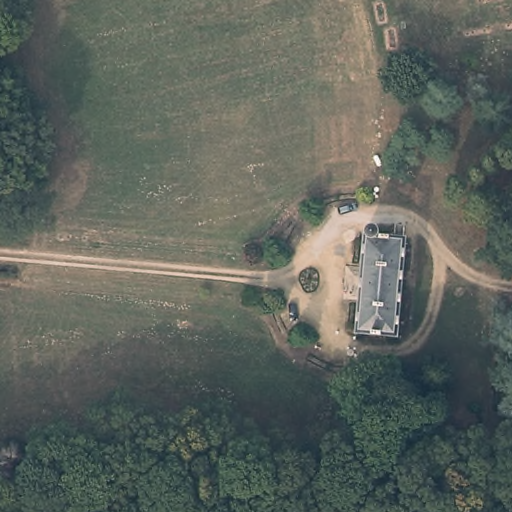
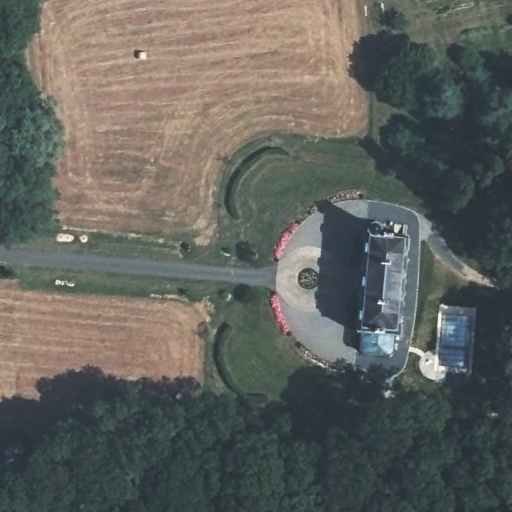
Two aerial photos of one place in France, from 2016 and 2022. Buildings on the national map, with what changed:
unchanged [(363,254),(365,235),(367,232),(368,226),(371,224),(376,225),(379,235),(407,237),(399,337),(356,332),(363,254)]

